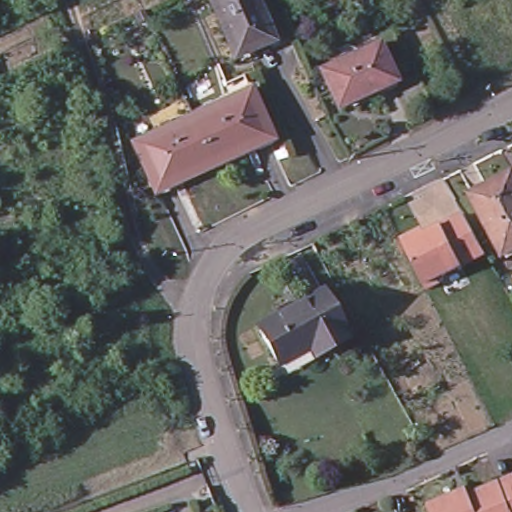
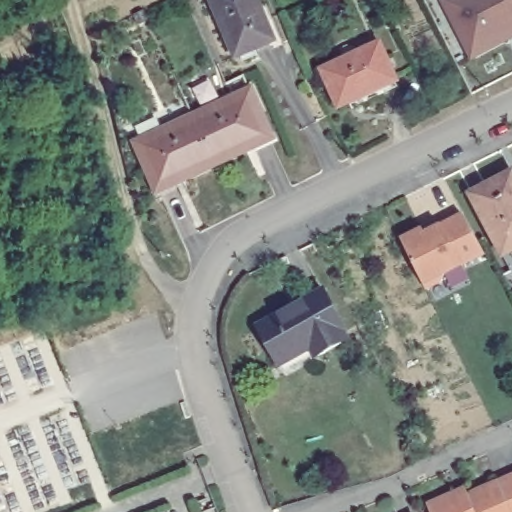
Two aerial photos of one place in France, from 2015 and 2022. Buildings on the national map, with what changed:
unchanged [(210,0),(255,0),(260,13),(256,14),(261,27),(265,25),(271,45),(232,60),(210,0)]
new [(440,0),(512,0),(512,38),(470,59),(440,0)]
unchanged [(136,28),(133,22),(143,17),(146,23),(136,28)]
unchanged [(323,77),(379,49),(397,86),(341,114),(323,77)]
unchanged [(249,97),(267,140),(242,151),(244,156),(215,169),(192,122),(249,97)]
unchanged [(180,186),(178,180),(153,192),(133,147),(192,122),(215,169),(180,186)]
unchanged [(512,178),(512,256),(506,259),(475,197),(512,178)]
unchanged [(422,229),(425,234),(462,214),(484,254),(445,274),(443,281),(426,289),(401,240),(422,229)]
unchanged [(257,331),(327,297),(348,334),(345,336),(351,345),(316,362),(311,355),(279,370),(257,331)]
unchanged [(460,496),(462,500),(502,483),(504,488),(512,485),(512,512),(435,512),(433,507),(460,496)]

